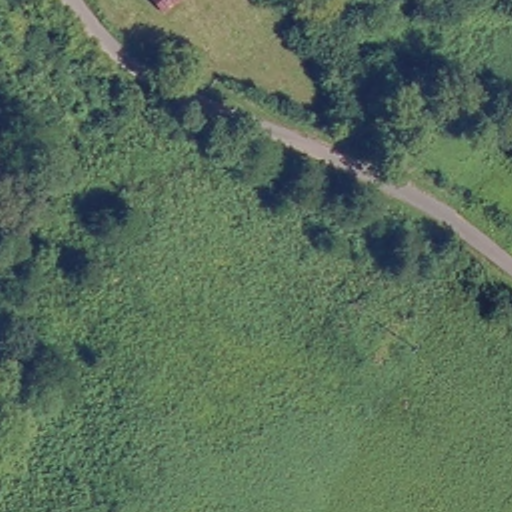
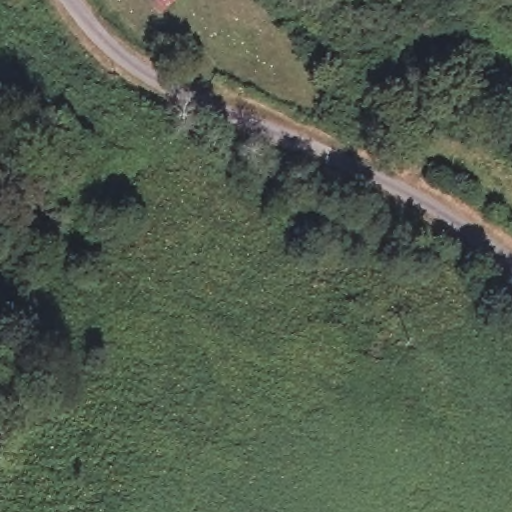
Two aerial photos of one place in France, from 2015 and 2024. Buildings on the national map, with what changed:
unchanged [(149,0),(176,0),(179,4),(160,14),(149,0)]

